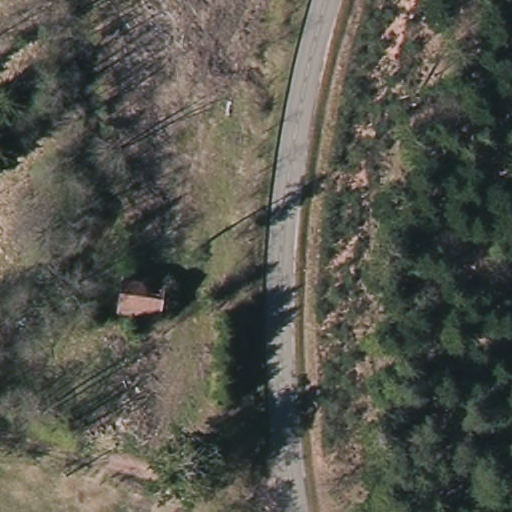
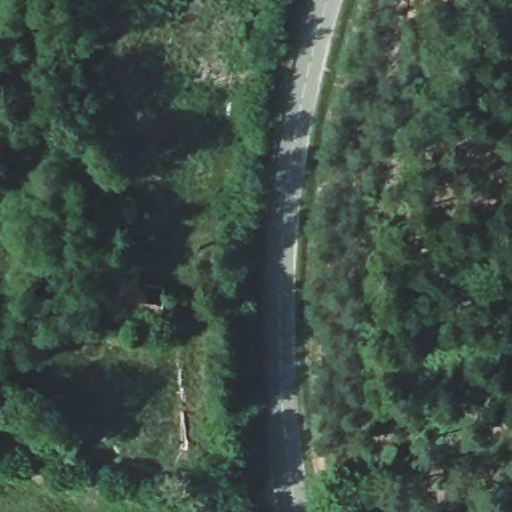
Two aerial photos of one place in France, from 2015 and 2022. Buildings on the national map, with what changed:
unchanged [(170,283),(161,324),(119,316),(123,296),(126,274),(170,283)]

